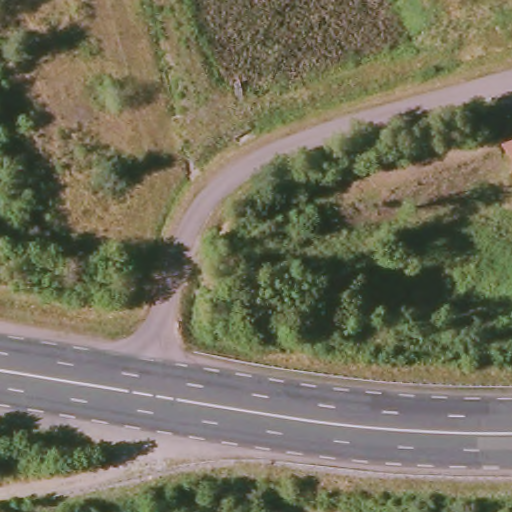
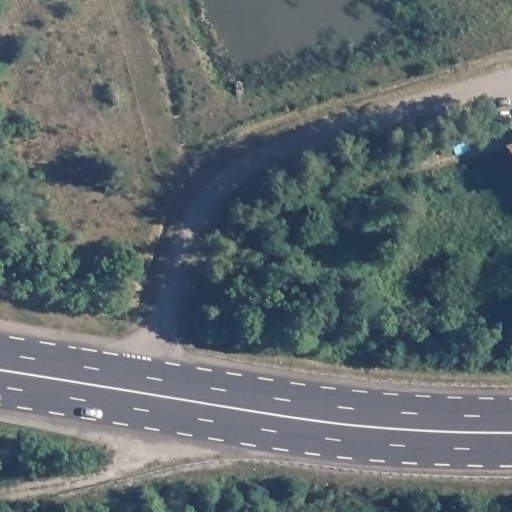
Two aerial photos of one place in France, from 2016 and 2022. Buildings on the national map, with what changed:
unchanged [(512,157),(512,160),(511,158),(512,157)]

